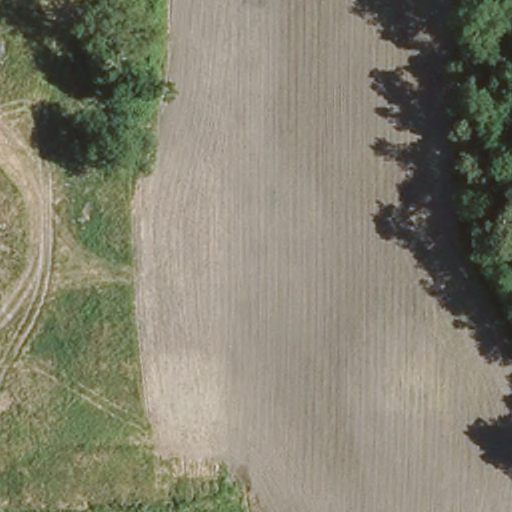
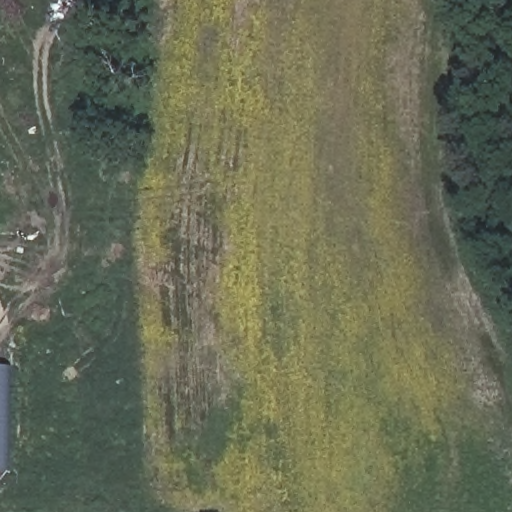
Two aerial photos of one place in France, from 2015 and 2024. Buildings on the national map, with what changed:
new [(10,366),(8,470),(0,470),(0,365),(10,366)]

